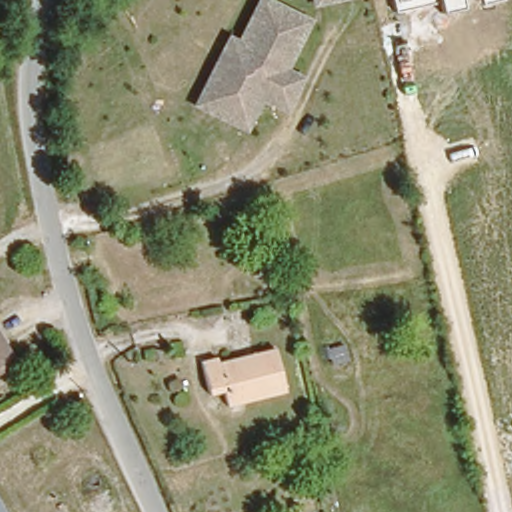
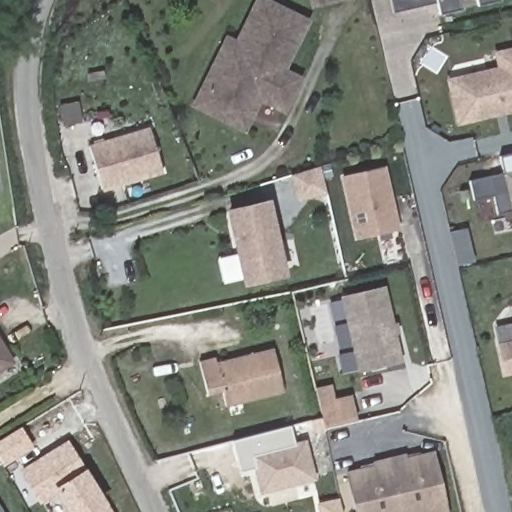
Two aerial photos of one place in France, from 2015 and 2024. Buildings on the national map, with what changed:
unchanged [(197,89),(218,50),(225,54),(232,42),(254,0),(255,0),(298,22),(273,71),(289,80),(277,102),(275,107),(258,99),(251,95),(242,112),(235,126),(190,102),(197,89)]
unchanged [(332,0),(309,6),(308,0),(332,0)]
unchanged [(438,11),(436,2),(390,13),(388,0),(458,0),(460,7),(438,11)]
unchanged [(476,0),(496,0),(476,4),(476,0)]
new [(491,51),(512,46),(512,112),(455,126),(445,78),(496,67),(491,51)]
new [(101,189),(88,146),(149,127),(161,173),(101,189)]
new [(399,229),(354,239),(339,176),(385,165),(399,229)]
new [(295,201),(290,174),(319,166),(326,194),(295,201)]
new [(509,213),(500,172),(512,169),(512,212),(509,213)]
new [(287,276),(241,286),(225,208),(269,197),(287,276)]
demolished [(264,228),(269,254),(256,256),(251,231),(264,228)]
new [(401,363),(356,372),(339,296),(384,286),(392,322),(396,322),(398,333),(395,334),(401,363)]
new [(507,377),(496,328),(511,322),(512,322),(512,376),(507,377)]
unchanged [(0,359),(0,338),(10,353),(0,359)]
unchanged [(270,346),(281,388),(241,399),(222,404),(219,389),(203,392),(196,359),(210,356),(211,360),(222,357),(270,346)]
new [(356,421),(322,427),(314,387),(330,384),(333,397),(350,395),(356,421)]
new [(305,440),(315,480),(260,495),(253,468),(240,472),(232,442),(293,426),(295,442),(305,440)]
new [(34,447),(3,467),(0,462),(0,439),(20,427),(34,447)]
new [(55,493),(39,503),(18,471),(67,438),(113,512),(67,512),(55,493)]
new [(433,451),(447,512),(354,512),(344,470),(372,464),(371,461),(404,453),(406,457),(433,451)]
new [(0,507),(3,512),(0,512),(0,507)]

